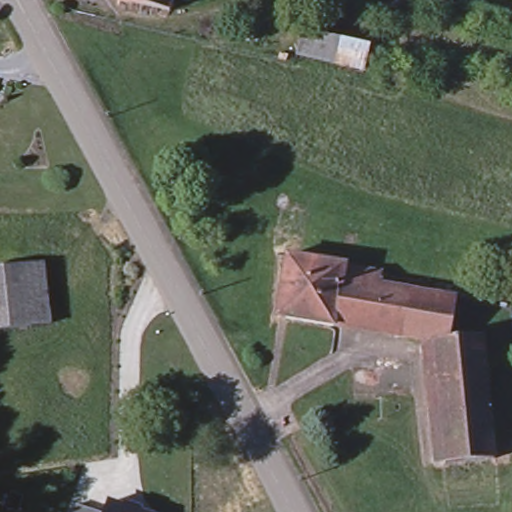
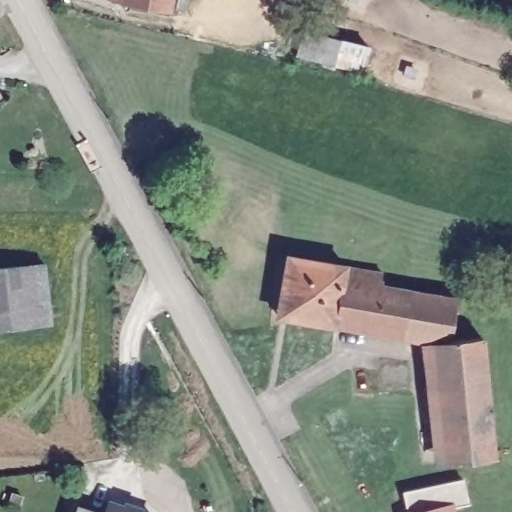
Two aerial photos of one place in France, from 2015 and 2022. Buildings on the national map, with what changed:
unchanged [(170,7),(132,0),(171,0),(170,7)]
unchanged [(368,47),(362,73),(298,56),(304,31),(368,47)]
unchanged [(287,315),(293,278),(283,277),(287,252),(345,262),(334,322),(287,315)]
unchanged [(382,270),(380,282),(456,296),(450,337),(431,340),(334,322),(345,262),(382,270)]
unchanged [(50,324),(0,329),(0,269),(45,265),(50,324)]
unchanged [(450,337),(482,334),(494,455),(445,461),(431,340),(450,337)]
new [(454,507),(455,512),(407,512),(403,491),(464,477),(470,504),(454,507)]
unchanged [(146,512),(103,512),(107,498),(146,512)]
unchanged [(72,512),(75,503),(101,512),(72,512)]

